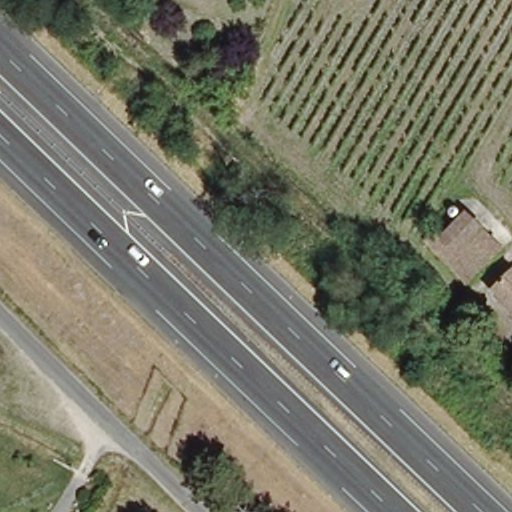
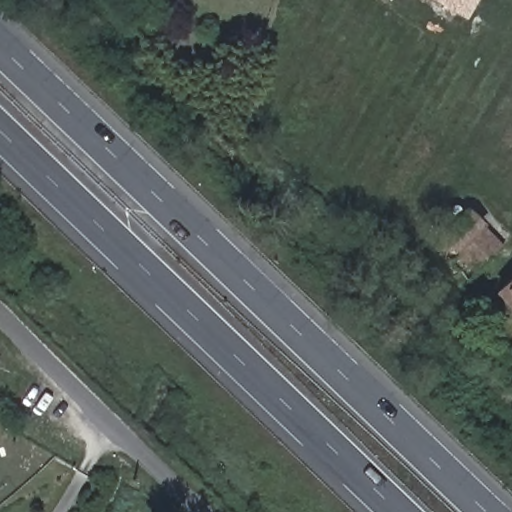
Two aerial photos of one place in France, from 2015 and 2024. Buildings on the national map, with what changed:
new [(476,0),(465,19),(433,0),(476,0)]
unchanged [(448,217),(459,229),(452,235),(459,242),(473,229),(479,236),(494,252),(468,279),(429,238),(428,236),(448,217)]
unchanged [(512,275),(512,306),(497,290),(512,275)]

